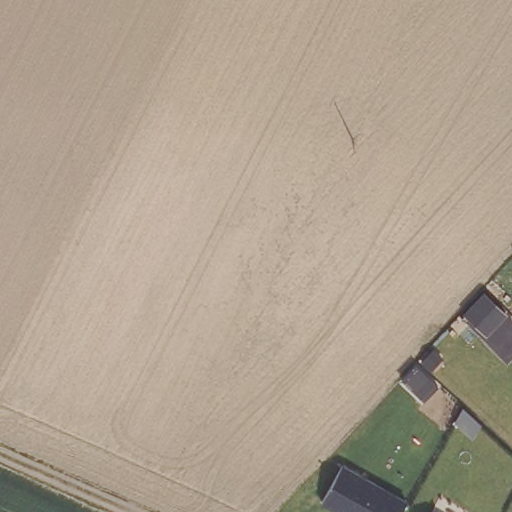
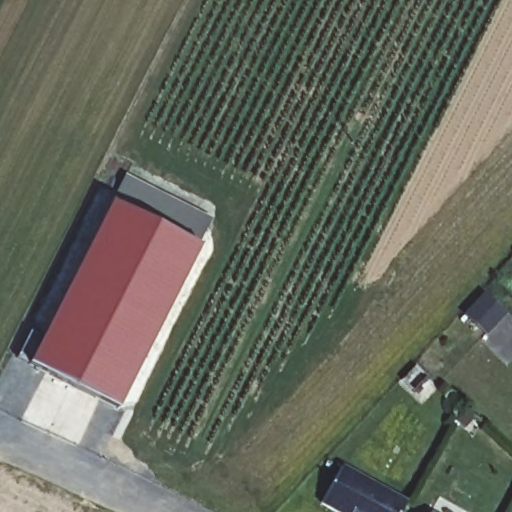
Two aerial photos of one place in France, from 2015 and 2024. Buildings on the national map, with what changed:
new [(41,337),(110,203),(198,248),(117,409),(28,364),(16,358),(30,331),(41,337)]
unchanged [(487,296),(508,315),(489,337),(468,317),(487,296)]
unchanged [(324,512),(320,510),(340,471),(405,506),(401,512),(324,512)]

